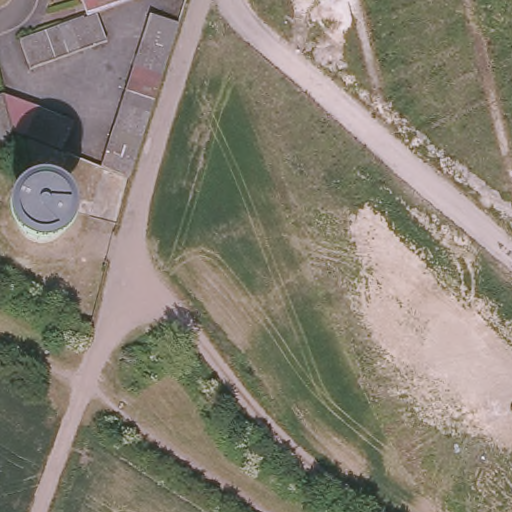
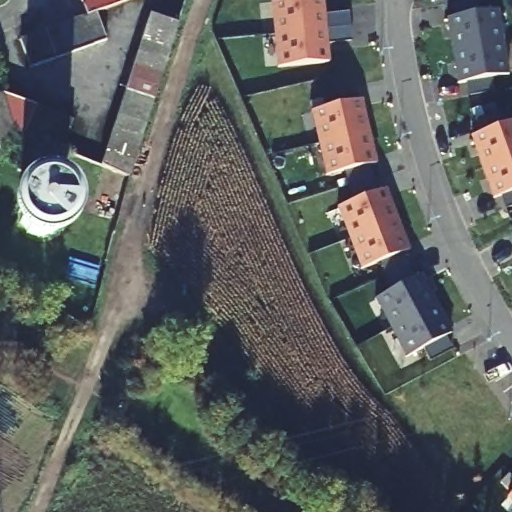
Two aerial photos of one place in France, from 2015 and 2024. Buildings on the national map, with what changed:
unchanged [(45,28),(56,24),(68,19),(82,14),(87,13),(83,0),(122,0),(94,10),(103,38),(93,42),(79,48),(66,52),(54,57),(41,62),(29,66),(20,37),(29,34),(32,33),(45,28)]
new [(283,66),(280,34),(277,1),(287,0),(323,0),(324,16),(350,13),(351,27),(352,41),(327,43),(326,29),(329,62),(283,66)]
new [(477,0),(478,0),(480,13),(455,17),(453,4),(477,0)]
new [(493,11),(499,44),(453,51),(448,19),(493,11)]
unchanged [(150,15),(177,25),(174,36),(170,47),(166,60),(162,74),(158,85),(154,97),(127,86),(131,75),(134,63),(139,50),(143,37),(147,26),(150,15)]
new [(499,44),(504,76),(459,84),(453,51),(499,44)]
new [(491,79),(493,92),(469,96),(466,83),(491,79)]
unchanged [(106,153),(110,138),(114,126),(118,114),(122,101),(126,91),(153,102),(150,111),(146,124),(142,136),(138,148),(134,162),(129,176),(102,165),(106,153)]
unchanged [(51,143),(38,138),(26,133),(12,128),(0,150),(0,95),(37,105),(49,110),(62,116),(74,121),(72,124),(63,149),(51,143)]
new [(369,132),(324,142),(317,110),(361,100),(369,132)]
new [(512,122),(512,157),(483,167),(472,136),(512,122)]
new [(331,174),(324,142),(369,132),(376,164),(331,174)]
unchanged [(66,156),(52,186),(16,171),(29,140),(66,156)]
new [(494,198),(483,167),(512,157),(512,192),(494,198)]
new [(397,220),(354,236),(342,205),(386,189),(397,220)]
new [(366,267),(354,236),(397,220),(409,251),(366,267)]
new [(436,304),(395,326),(380,297),(421,275),(436,304)]
new [(411,355),(395,326),(436,304),(452,333),(411,355)]
new [(511,493),(512,492),(512,494),(511,493)]

